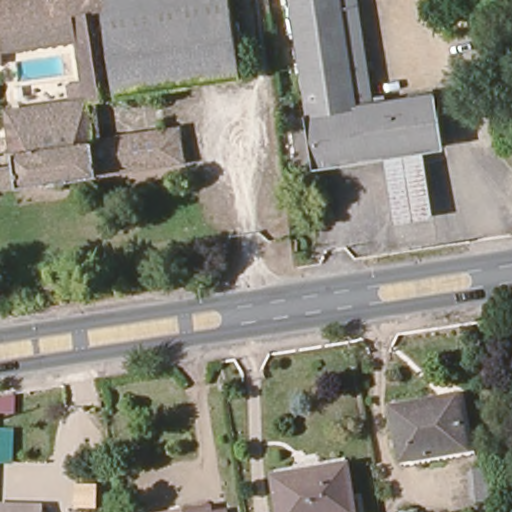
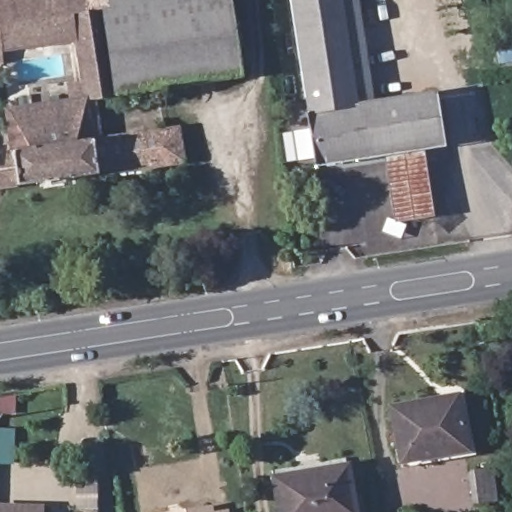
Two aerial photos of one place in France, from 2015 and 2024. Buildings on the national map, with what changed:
unchanged [(33,0),(38,37),(1,41),(3,66),(0,67),(0,0),(33,0)]
unchanged [(106,7),(89,10),(101,96),(88,98),(78,32),(38,37),(33,0),(106,0),(106,7)]
unchanged [(106,7),(106,0),(230,0),(239,79),(101,96),(89,10),(106,7)]
unchanged [(291,0),(359,0),(378,99),(431,93),(440,145),(426,147),(387,153),(317,162),(291,0)]
unchanged [(47,103),(88,98),(93,136),(181,125),(186,161),(75,175),(57,177),(47,103)]
unchanged [(9,108),(47,103),(57,177),(3,184),(0,185),(0,168),(17,165),(9,108)]
unchanged [(426,147),(437,217),(397,224),(387,153),(426,147)]
unchanged [(384,409),(455,396),(465,453),(394,465),(384,409)]
unchanged [(346,465),(353,512),(281,512),(275,476),(346,465)]
unchanged [(44,505),(44,512),(10,512),(10,507),(44,505)]
unchanged [(198,512),(214,509),(214,512),(198,512)]

